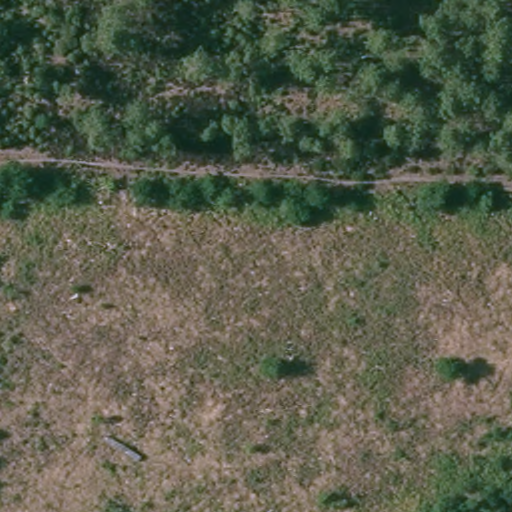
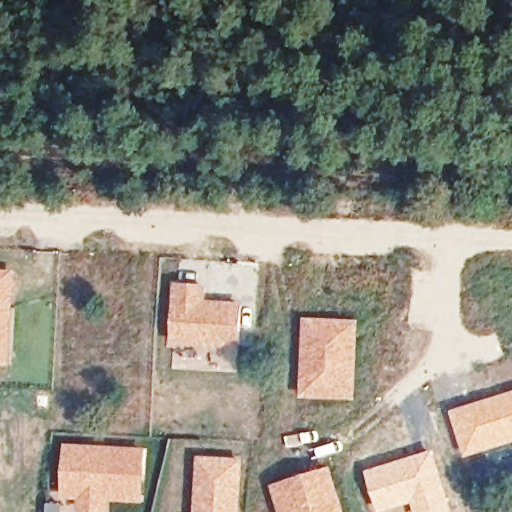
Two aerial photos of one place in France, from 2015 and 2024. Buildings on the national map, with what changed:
new [(11,367),(0,366),(0,270),(16,270),(11,367)]
new [(242,303),(239,348),(170,345),(172,282),(207,285),(207,300),(242,303)]
new [(300,398),(303,318),(359,320),(357,400),(300,398)]
new [(466,458),(451,411),(512,392),(512,443),(466,458)]
new [(144,502),(110,502),(109,512),(77,512),(78,500),(62,499),(66,443),(146,448),(144,502)]
new [(453,511),(451,512),(415,512),(412,503),(383,512),(379,512),(366,470),(432,450),(453,511)]
new [(241,512),(193,512),(197,456),(244,458),(241,512)]
new [(345,512),(278,512),(270,485),(330,466),(345,512)]

